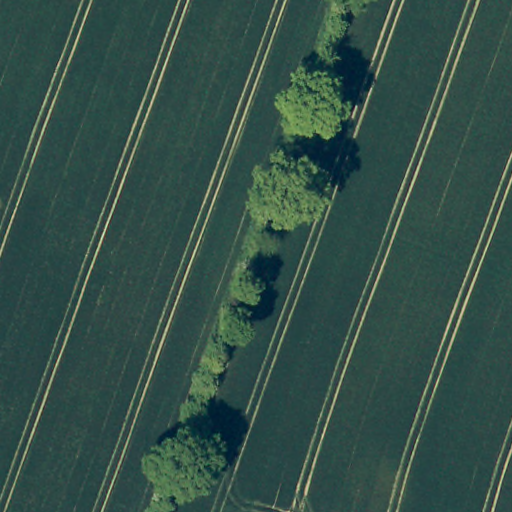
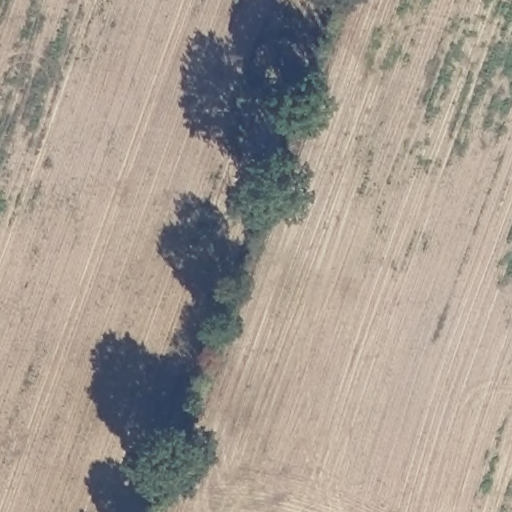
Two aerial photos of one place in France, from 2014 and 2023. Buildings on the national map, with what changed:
[]

